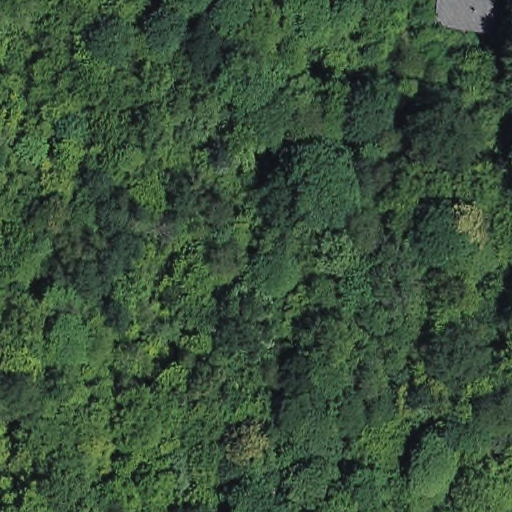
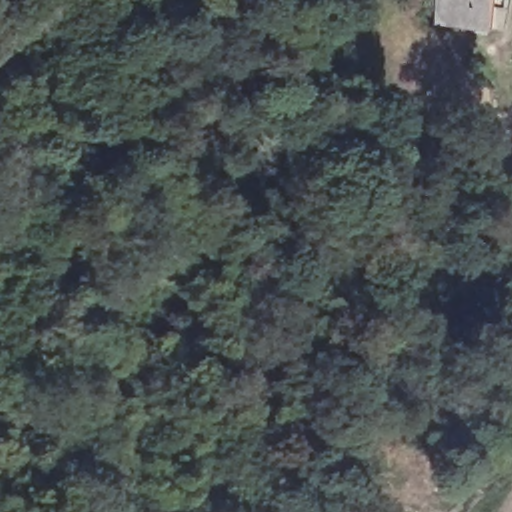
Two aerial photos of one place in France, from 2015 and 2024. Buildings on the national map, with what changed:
unchanged [(490,0),(485,30),(439,24),(442,0),(490,0)]

